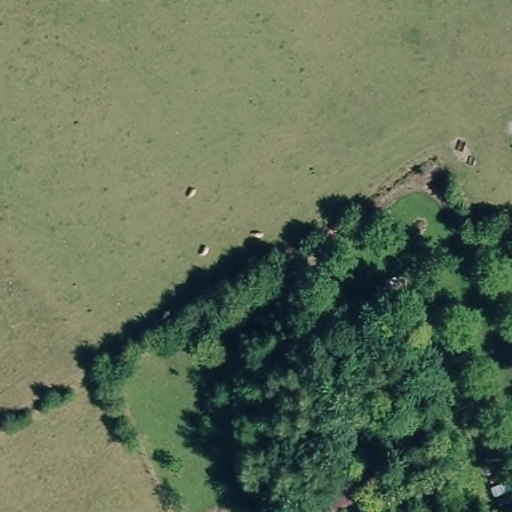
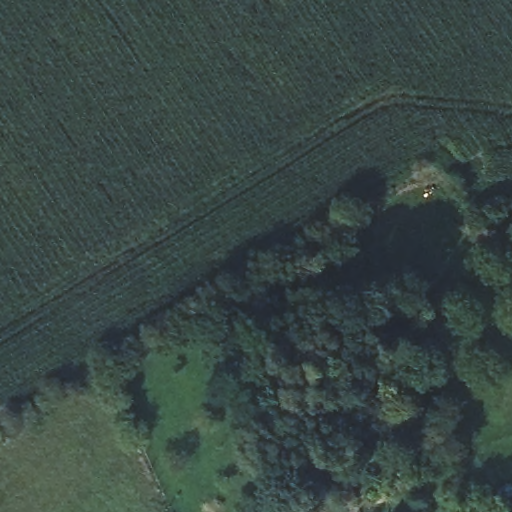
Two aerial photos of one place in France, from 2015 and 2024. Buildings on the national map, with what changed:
unchanged [(285,301),(235,330),(226,307),(275,281),(285,301)]
unchanged [(366,493),(323,510),(313,472),(351,453),(366,493)]

